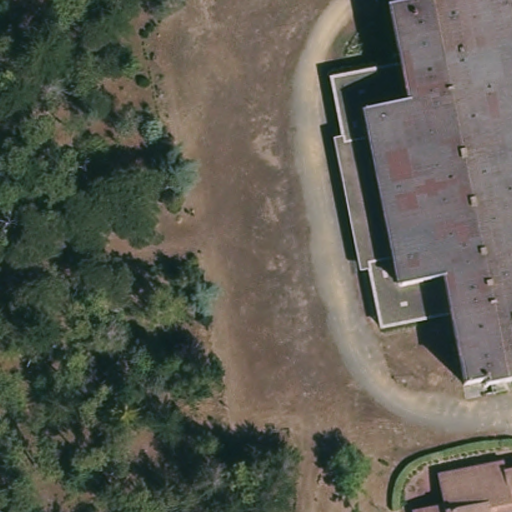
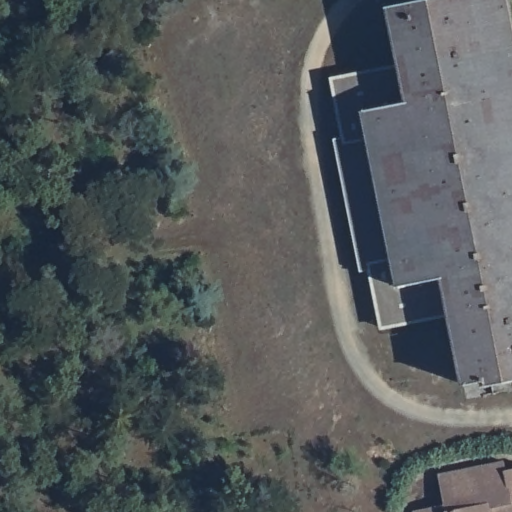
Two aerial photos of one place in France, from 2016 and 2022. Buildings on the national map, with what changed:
unchanged [(512,404),(496,408),(494,398),(480,401),(478,389),(461,393),(446,321),(380,333),(333,88),(403,74),(389,4),(407,0),(507,0),(512,28),(512,404)]
unchanged [(440,502),(436,472),(504,458),(502,461),(505,471),(512,469),(512,512),(409,512),(407,506),(440,502)]

